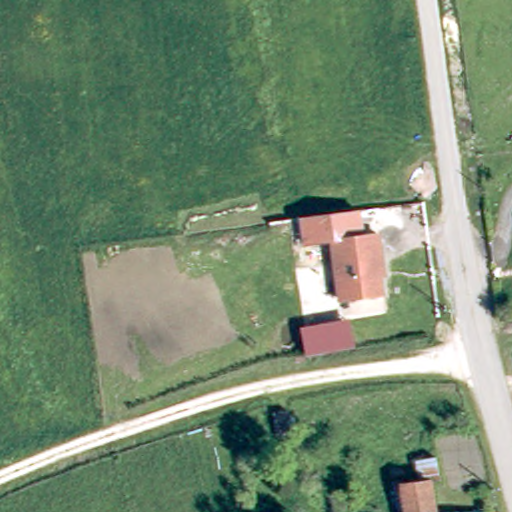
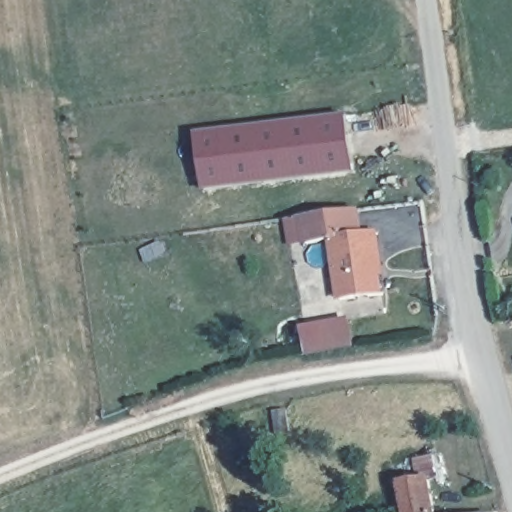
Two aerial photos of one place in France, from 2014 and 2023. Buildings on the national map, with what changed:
new [(349,119),(356,177),(203,193),(199,136),(349,119)]
unchanged [(365,239),(337,242),(305,246),(301,218),(362,210),(365,239)]
unchanged [(385,280),(386,297),(345,303),(337,242),(382,236),(386,268),(388,280),(385,280)]
unchanged [(351,313),(357,346),(306,356),(300,323),(351,313)]
unchanged [(280,413),(293,412),(296,435),(283,436),(280,413)]
unchanged [(411,483),(426,481),(425,459),(446,457),(449,478),(442,479),(446,512),(415,512),(411,483)]

